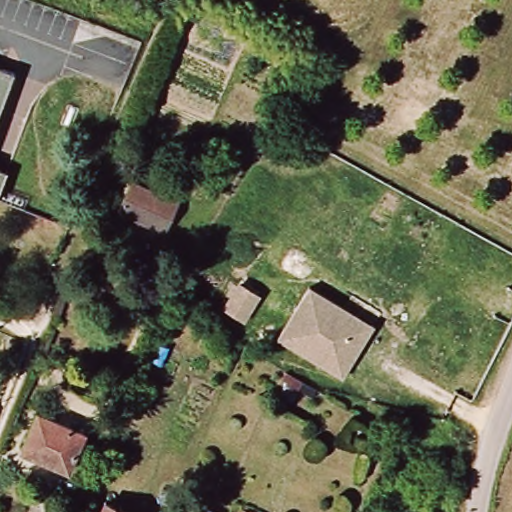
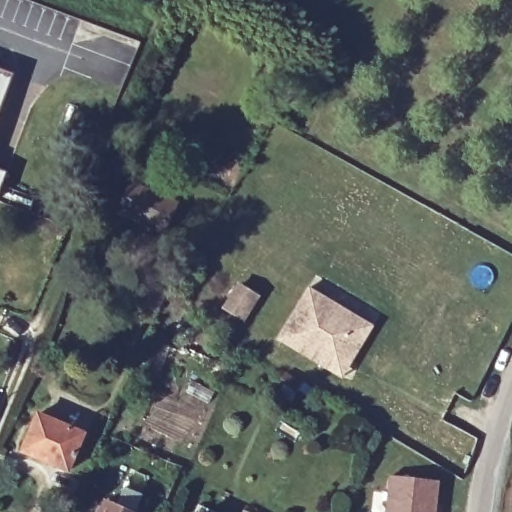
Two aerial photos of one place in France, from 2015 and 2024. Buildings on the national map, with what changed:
unchanged [(16,75),(0,118),(0,69),(16,75)]
unchanged [(0,196),(0,171),(8,174),(0,196)]
unchanged [(160,234),(118,214),(131,187),(173,207),(160,234)]
unchanged [(237,286),(256,298),(242,321),(223,308),(237,286)]
unchanged [(342,379),(329,372),(277,341),(308,288),(360,320),(373,327),(342,379)]
unchanged [(149,290),(161,295),(153,313),(142,308),(149,290)]
unchanged [(293,381),(287,378),(290,374),(307,385),(303,391),(292,384),(293,381)]
unchanged [(38,416),(84,435),(69,472),(23,453),(38,416)]
new [(431,483),(428,512),(382,512),(386,478),(431,483)]
unchanged [(108,512),(111,507),(122,512),(108,512)]
unchanged [(252,512),(242,512),(244,508),(252,512)]

